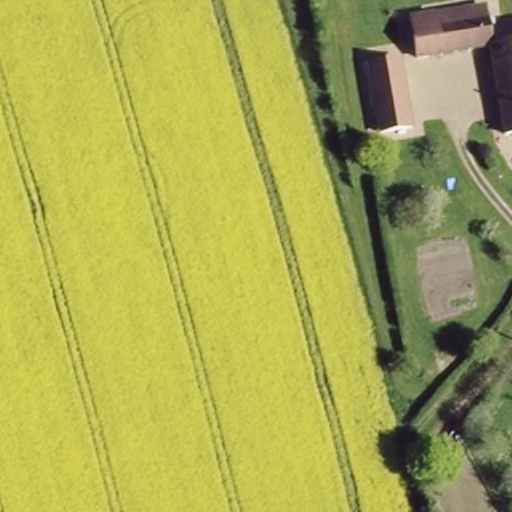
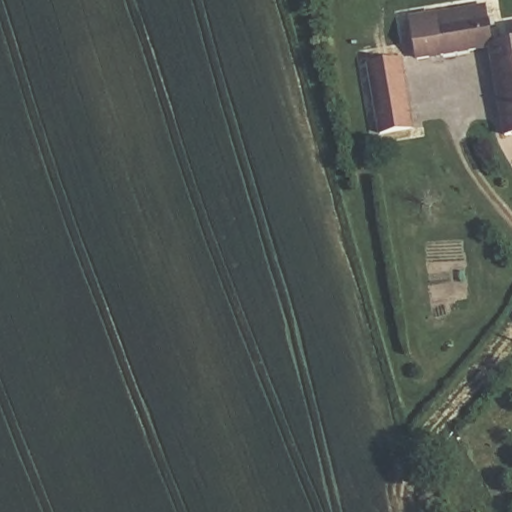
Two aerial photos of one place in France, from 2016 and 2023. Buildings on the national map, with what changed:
unchanged [(482,6),(490,45),(412,56),(404,20),(482,6)]
unchanged [(512,41),(512,59),(493,65),(490,45),(512,41)]
unchanged [(412,130),(378,134),(366,61),(402,56),(412,130)]
unchanged [(512,139),(506,141),(493,65),(512,59),(512,139)]

